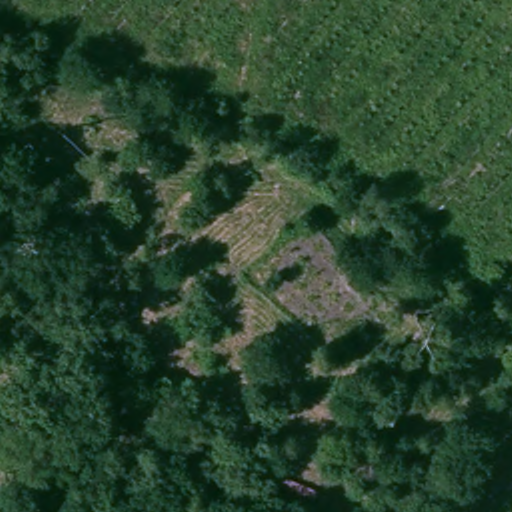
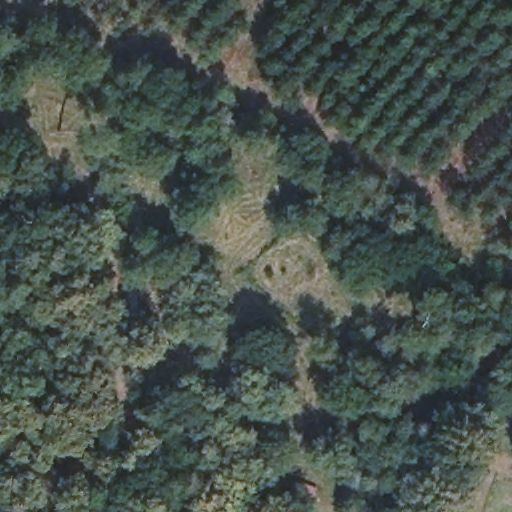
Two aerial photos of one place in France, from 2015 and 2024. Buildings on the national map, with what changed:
[]

